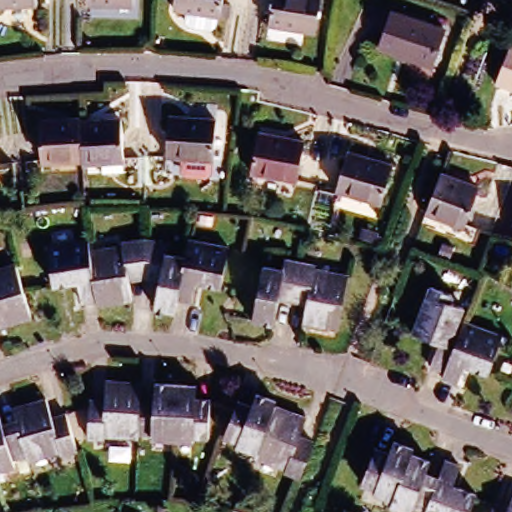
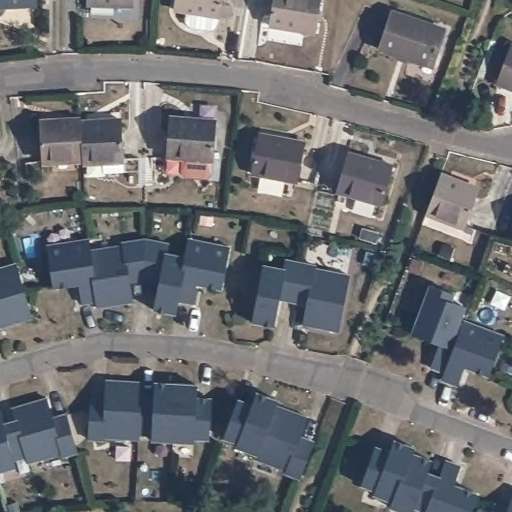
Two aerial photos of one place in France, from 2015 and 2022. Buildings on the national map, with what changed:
unchanged [(39,3),(0,7),(0,0),(39,0),(39,3)]
unchanged [(140,7),(92,5),(92,0),(140,0),(140,7)]
unchanged [(223,17),(173,12),(174,0),(224,0),(223,17)]
unchanged [(316,34),(266,27),(270,0),(320,0),(316,34)]
unchanged [(444,35),(432,70),(381,52),(393,16),(444,35)]
unchanged [(509,46),(512,47),(512,88),(496,81),(509,46)]
unchanged [(80,118),(81,156),(38,159),(36,116),(80,114),(80,118)]
unchanged [(105,167),(105,160),(81,161),(81,156),(80,118),(124,116),(125,160),(125,166),(105,167)]
unchanged [(221,121),(218,160),(169,157),(171,117),(221,121)]
unchanged [(309,137),(304,176),(254,170),(259,131),(309,137)]
unchanged [(0,180),(0,151),(2,165),(4,180),(0,180)]
unchanged [(390,169),(379,207),(331,194),(341,155),(390,169)]
unchanged [(442,179),(461,186),(463,182),(484,190),(469,232),(427,217),(442,179)]
unchanged [(512,239),(512,244),(511,243),(512,239)]
unchanged [(123,249),(121,245),(145,241),(146,281),(128,285),(131,304),(98,310),(98,305),(89,255),(123,249)]
unchanged [(168,245),(166,252),(187,256),(179,300),(178,313),(158,310),(161,284),(146,281),(145,241),(168,245)]
unchanged [(188,241),(228,247),(221,290),(197,286),(194,303),(179,300),(187,256),(188,241)]
unchanged [(98,305),(81,307),(79,291),(55,294),(48,253),(88,246),(89,255),(98,305)]
unchanged [(20,259),(36,312),(2,322),(0,315),(0,265),(20,259)]
unchanged [(291,302),(278,300),(273,326),(252,323),(263,268),(283,272),(284,263),(299,266),(291,302)]
unchanged [(313,268),(313,271),(347,277),(336,331),(302,324),(306,305),(291,302),(299,266),(313,268)]
unchanged [(438,367),(423,361),(432,338),(406,327),(422,285),(443,293),(441,299),(456,305),(446,331),(450,333),(438,367)]
unchanged [(455,321),(492,335),(478,371),(456,362),(449,378),(435,373),(438,367),(450,333),(455,321)]
unchanged [(285,473),(286,470),(253,458),(254,454),(236,447),(237,442),(223,436),(236,402),(251,406),(256,394),(274,401),(272,405),(305,417),(298,436),(314,442),(313,444),(300,478),(285,473)]
unchanged [(78,448),(64,453),(63,449),(30,457),(28,451),(13,456),(14,462),(0,466),(0,414),(2,421),(18,416),(15,405),(48,395),(53,412),(67,407),(78,448)]
unchanged [(205,441),(191,441),(190,444),(151,441),(152,440),(136,438),(136,442),(102,441),(101,445),(88,443),(91,415),(103,415),(104,395),(140,396),(138,408),(153,408),(155,397),(193,400),(193,411),(206,412),(205,441)]
unchanged [(421,512),(413,509),(412,512),(402,512),(390,507),(393,501),(373,495),(375,487),(361,481),(375,449),(387,454),(393,442),(412,450),(411,455),(431,462),(427,473),(442,480),(448,462),(462,468),(456,485),(474,490),(466,512),(421,512)]
unchanged [(512,510),(512,512),(493,512),(496,503),(512,510)]

